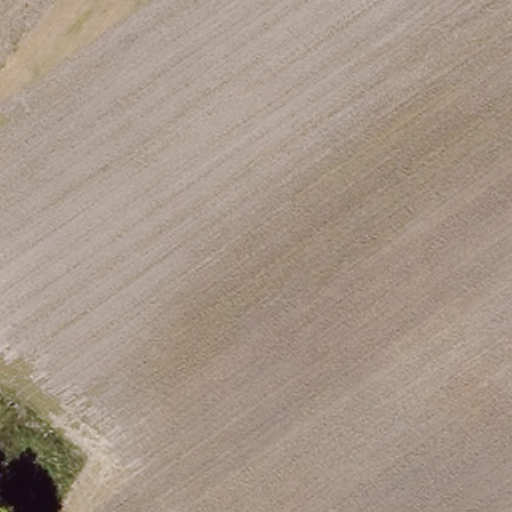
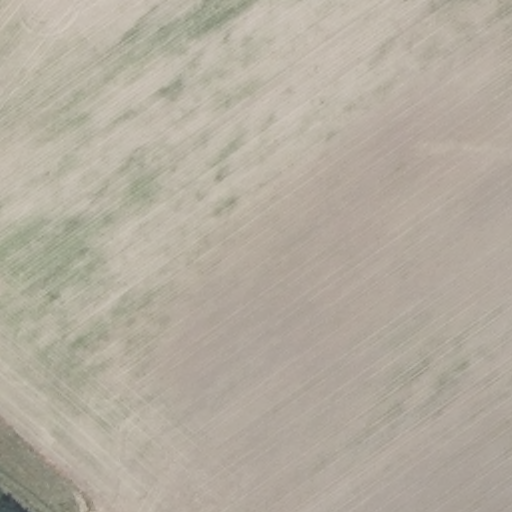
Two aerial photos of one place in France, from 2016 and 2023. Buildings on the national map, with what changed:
[]

